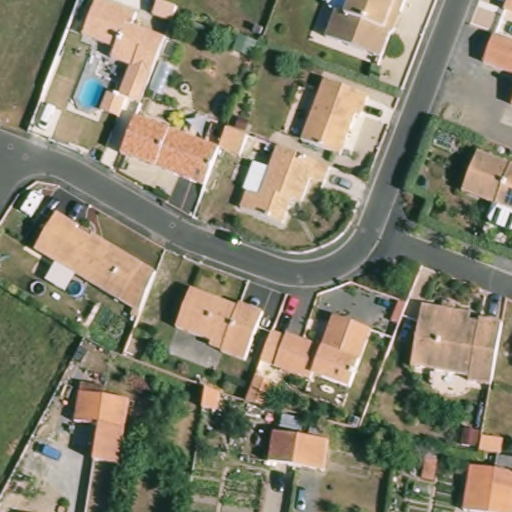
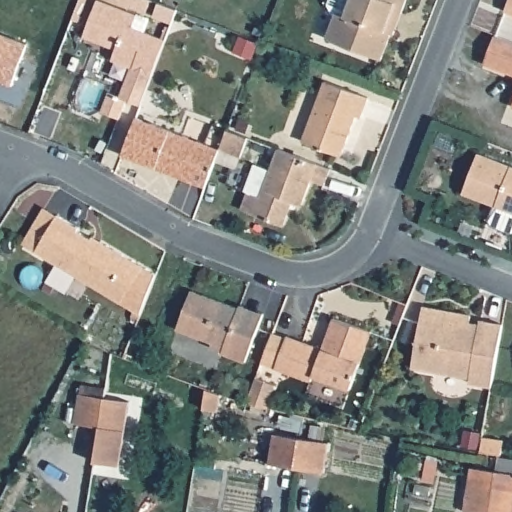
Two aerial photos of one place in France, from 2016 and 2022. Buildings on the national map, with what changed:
unchanged [(101,111),(109,91),(120,95),(131,66),(112,58),(116,48),(83,35),(97,0),(100,0),(137,14),(132,26),(166,39),(161,50),(140,104),(126,99),(119,118),(101,111)]
unchanged [(381,57),(327,36),(337,9),(332,7),(330,2),(331,0),(406,0),(402,11),(394,31),(391,30),(381,57)]
unchanged [(508,0),(512,0),(512,12),(505,9),(508,0)]
unchanged [(178,11),(172,25),(154,18),(159,4),(178,11)]
unchanged [(495,33),(512,40),(512,72),(483,61),(495,33)]
new [(26,43),(12,86),(0,83),(0,34),(26,43)]
unchanged [(368,99),(361,119),(356,118),(341,158),(302,144),(325,83),(368,99)]
unchanged [(224,127),(245,135),(237,154),(216,146),(202,183),(117,151),(132,114),(216,146),(224,127)]
unchanged [(326,182),(311,176),(301,202),(292,199),(283,222),(241,207),(248,189),(246,188),(256,161),(271,167),(279,146),(332,166),(326,182)]
unchanged [(478,151),(512,164),(512,209),(463,191),(478,151)]
unchanged [(81,225),(79,228),(101,241),(103,238),(145,263),(123,299),(37,247),(59,211),(81,225)]
unchanged [(240,306),(241,303),(264,312),(246,360),(222,351),(225,345),(177,327),(192,288),(240,306)]
unchanged [(504,322),(492,384),(470,380),(471,375),(413,364),(424,304),(472,313),(471,320),(481,322),(482,318),(504,322)]
unchanged [(261,361),(272,333),(286,339),(287,335),(323,349),(335,318),(372,332),(350,389),(312,375),(311,380),(275,367),(261,361)]
unchanged [(256,380),(277,388),(269,409),(266,408),(251,404),(247,403),(256,380)]
unchanged [(99,428),(74,424),(79,394),(103,398),(128,402),(119,468),(92,464),(93,462),(99,428)]
unchanged [(324,473),(293,468),(267,464),(272,433),(298,437),(328,442),(324,473)]
unchanged [(472,512),(470,511),(476,468),(500,472),(494,512),(472,512)]
unchanged [(512,512),(494,512),(500,472),(512,474),(512,512)]

